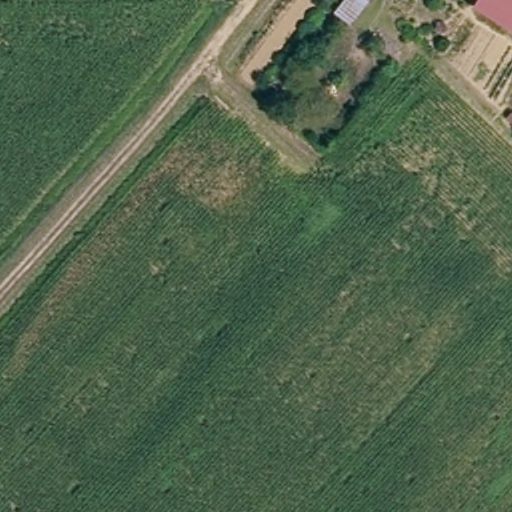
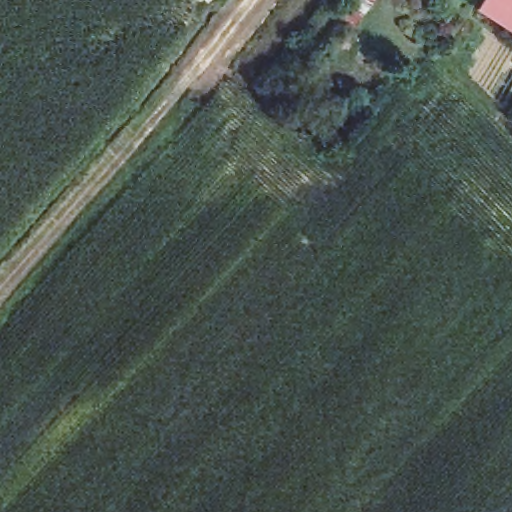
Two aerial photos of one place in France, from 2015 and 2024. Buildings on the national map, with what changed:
unchanged [(512,32),(473,8),(478,0),(512,0),(512,32)]
unchanged [(512,115),(512,121),(509,119),(512,115)]

